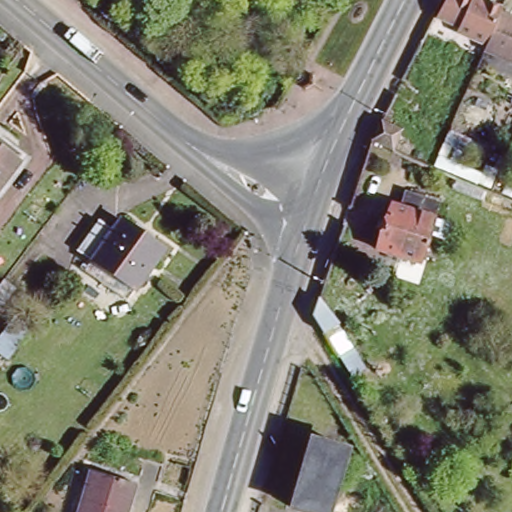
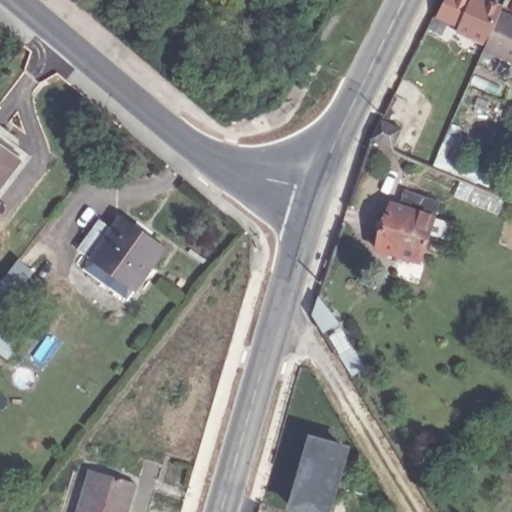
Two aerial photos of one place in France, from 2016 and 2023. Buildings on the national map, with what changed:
unchanged [(465,0),(468,1),(469,0),(489,0),(502,6),(500,10),(485,44),(455,30),(457,25),(432,14),(440,0),(465,0)]
unchanged [(485,44),(500,10),(512,16),(512,61),(483,48),(485,44)]
unchanged [(380,117),(401,126),(392,146),(370,137),(380,117)]
unchanged [(0,193),(0,147),(22,162),(0,193)]
unchanged [(397,256),(400,247),(381,240),(395,196),(438,210),(423,255),(411,250),(408,260),(397,256)]
unchanged [(92,263),(103,249),(92,240),(115,211),(126,219),(133,210),(172,241),(132,295),(92,263)]
unchanged [(310,312),(316,295),(335,321),(321,330),(310,312)]
unchanged [(315,440),(348,450),(331,512),(304,512),(295,510),(315,440)]
unchanged [(94,465),(140,478),(131,512),(80,512),(94,465)]

